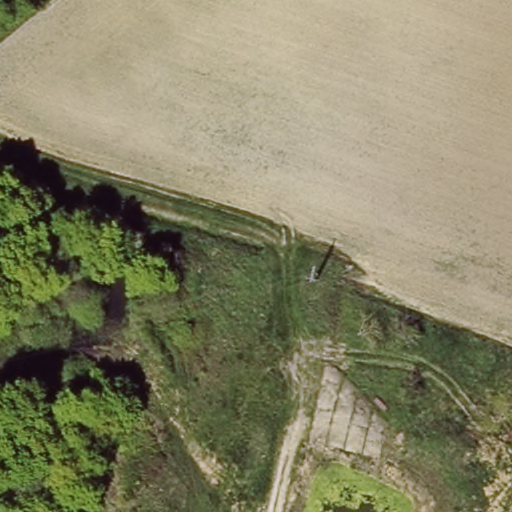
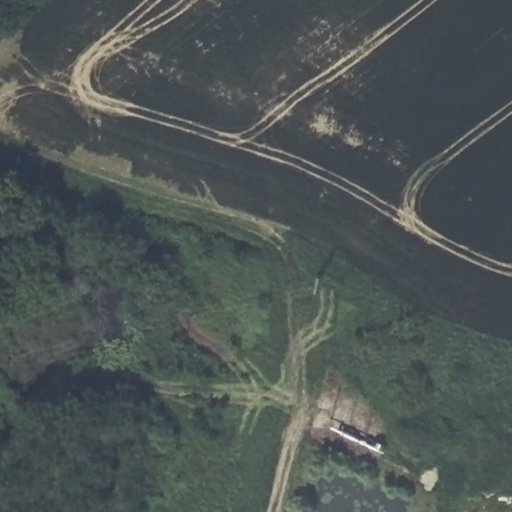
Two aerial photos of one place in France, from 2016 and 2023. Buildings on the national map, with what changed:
[]

